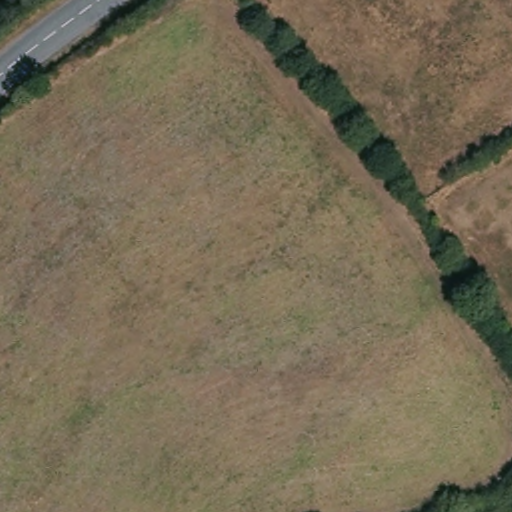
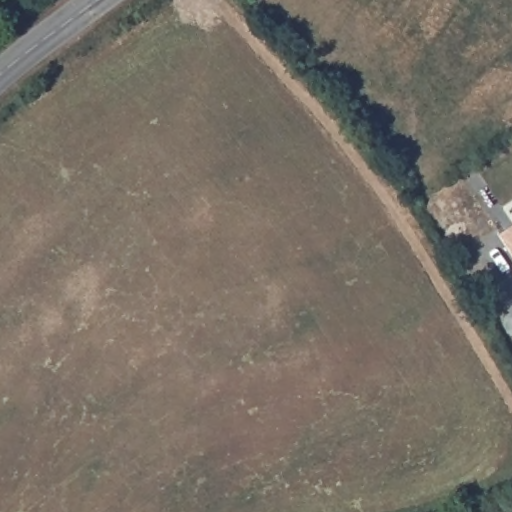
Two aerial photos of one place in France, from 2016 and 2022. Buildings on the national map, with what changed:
new [(512,223),(512,261),(495,234),(512,223)]

